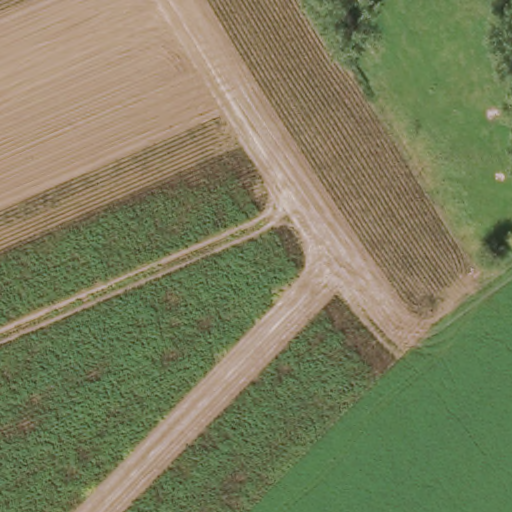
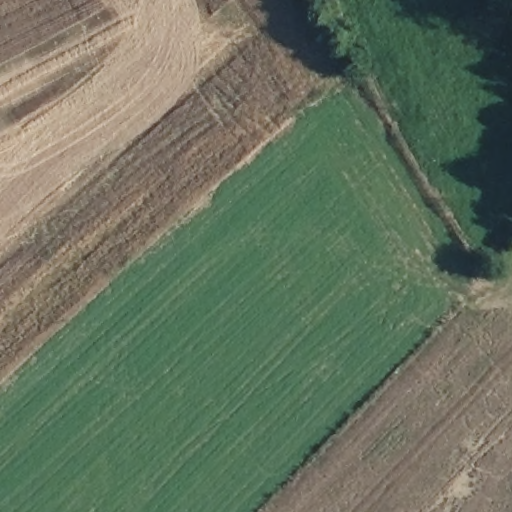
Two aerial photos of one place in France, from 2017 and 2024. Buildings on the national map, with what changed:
[]

